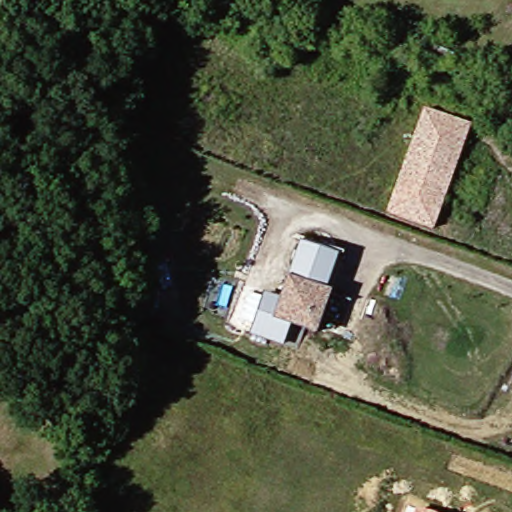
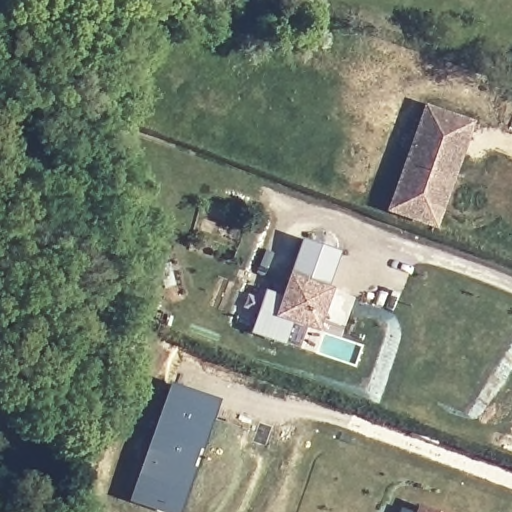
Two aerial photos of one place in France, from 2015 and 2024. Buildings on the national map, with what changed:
unchanged [(425,124),(432,106),(442,109),(478,123),(471,145),(455,179),(436,226),(398,211),(392,208),(408,165),(425,124)]
unchanged [(301,320),(288,318),(281,338),(250,328),(266,289),(283,293),(305,237),(338,250),(324,285),(329,287),(320,313),(315,325),(301,320)]
new [(135,495),(165,506),(171,488),(184,492),(192,465),(185,462),(191,444),(199,447),(215,402),(171,387),(174,383),(221,398),(182,512),(167,512),(132,501),(135,495)]
new [(171,387),(215,402),(199,447),(191,444),(185,462),(192,465),(184,492),(171,488),(165,506),(135,495),(171,387)]
unchanged [(436,512),(415,512),(417,506),(436,512)]

